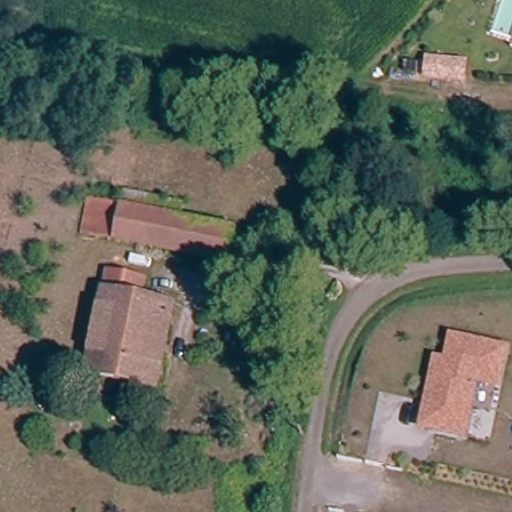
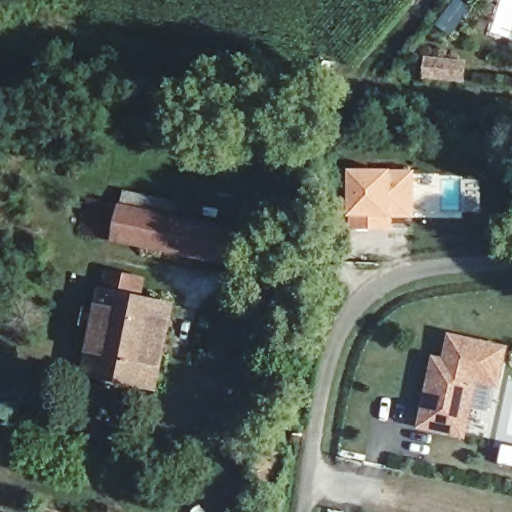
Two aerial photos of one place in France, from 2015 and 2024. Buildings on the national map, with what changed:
new [(414,170),(413,220),(393,219),(393,231),(351,230),(350,169),(414,170)]
unchanged [(227,228),(220,260),(119,243),(81,234),(87,200),(125,209),(127,209),(136,211),(216,226),(227,228)]
unchanged [(109,277),(179,288),(176,306),(106,293),(109,277)]
unchanged [(90,378),(105,302),(106,293),(176,306),(160,390),(90,378)]
unchanged [(418,427),(435,355),(445,358),(450,333),(510,348),(501,387),(473,382),(472,388),(478,390),(467,439),(418,427)]

